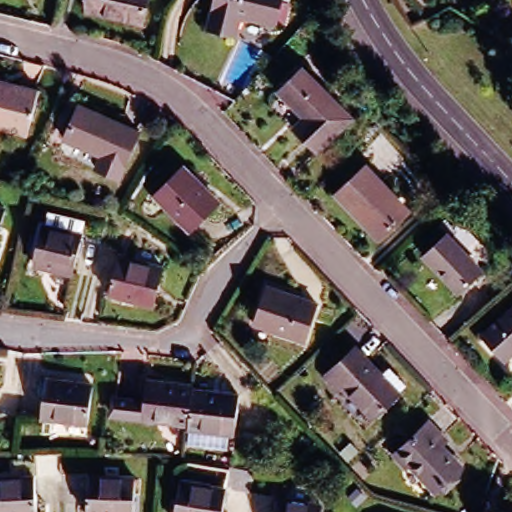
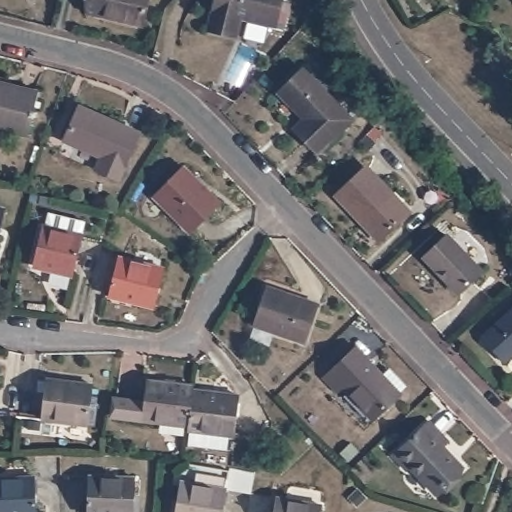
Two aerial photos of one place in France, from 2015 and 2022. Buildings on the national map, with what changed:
unchanged [(93,20),(98,0),(153,0),(146,31),(93,20)]
unchanged [(240,18),(234,37),(207,28),(216,0),(280,0),(271,28),(240,18)]
unchanged [(356,120),(323,152),(301,127),(311,117),(288,92),(311,71),(356,120)]
unchanged [(38,95),(25,139),(0,132),(0,84),(38,95)]
unchanged [(138,137),(116,183),(94,174),(100,161),(66,145),(81,112),(138,137)]
unchanged [(220,202),(193,230),(158,196),(185,169),(220,202)]
unchanged [(416,216),(388,242),(346,199),(374,172),(416,216)]
unchanged [(5,210),(0,230),(0,209),(5,210)]
unchanged [(50,221),(88,230),(84,243),(86,244),(76,287),(48,280),(49,276),(34,272),(44,233),(47,234),(50,221)]
unchanged [(482,272),(457,297),(425,264),(449,240),(482,272)]
unchanged [(166,271),(156,311),(108,301),(118,260),(166,271)]
unchanged [(317,300),(305,337),(258,322),(270,285),(317,300)]
unchanged [(483,332),(512,302),(512,346),(504,354),(483,332)]
unchanged [(398,391),(368,420),(326,376),(356,347),(398,391)]
unchanged [(90,385),(86,427),(38,421),(42,378),(90,385)]
unchanged [(194,390),(188,430),(139,422),(110,418),(113,400),(142,403),(145,380),(194,386),(194,390)]
unchanged [(188,430),(194,390),(243,397),(238,440),(188,432),(188,430)]
unchanged [(393,460),(399,454),(429,425),(440,436),(447,443),(441,448),(462,470),(437,494),(409,466),(404,471),(393,460)]
unchanged [(141,475),(140,512),(92,512),(93,473),(141,475)]
unchanged [(35,476),(39,512),(0,512),(0,478),(35,476)]
unchanged [(227,487),(224,512),(174,512),(178,481),(227,487)]
unchanged [(321,503),(320,512),(270,512),(272,497),(321,503)]

